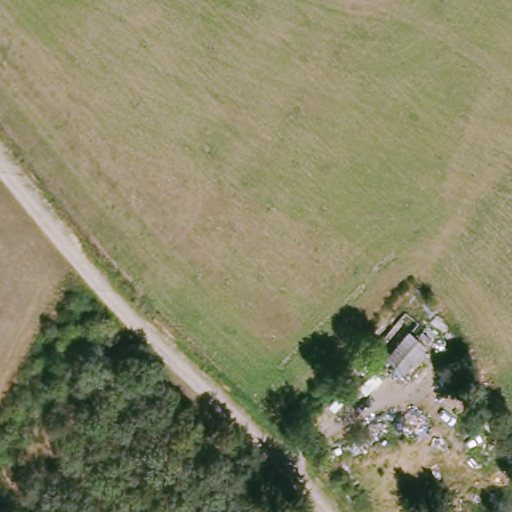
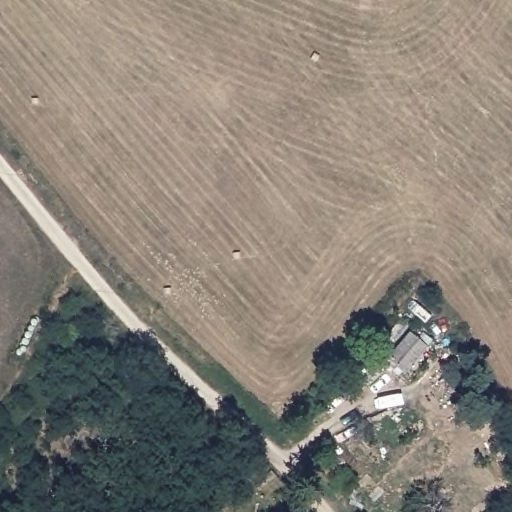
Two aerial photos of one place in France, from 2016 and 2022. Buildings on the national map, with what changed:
unchanged [(388,359),(410,333),(426,347),(404,372),(388,359)]

